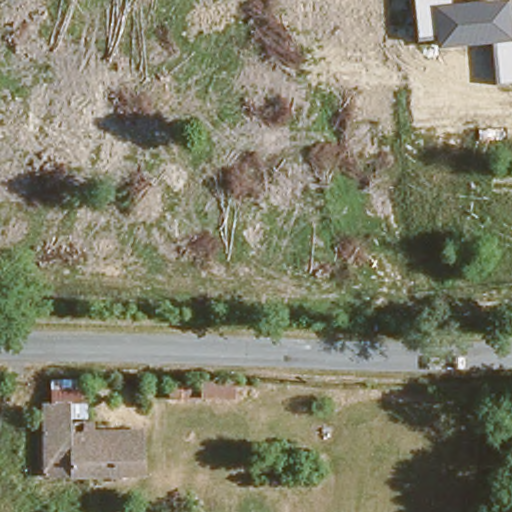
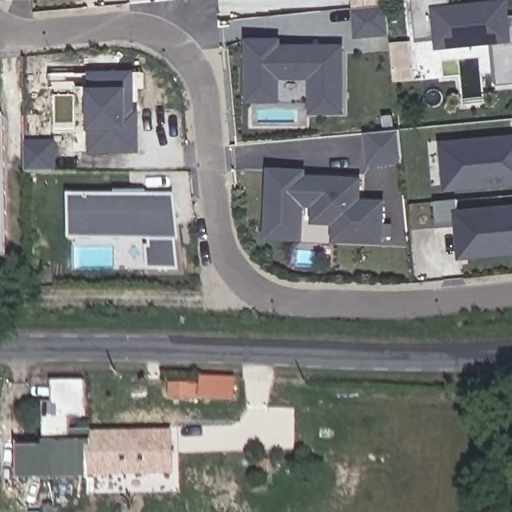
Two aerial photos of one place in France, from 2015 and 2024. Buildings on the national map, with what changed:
new [(385,2),(352,7),(352,0),(384,0),(385,2)]
unchanged [(511,17),(512,16),(512,83),(498,84),(494,44),(438,49),(437,40),(418,41),(413,0),(451,0),(452,6),(510,0),(511,17)]
new [(253,97),(253,87),(252,67),(252,55),(252,40),(282,39),(282,47),(337,46),(338,104),(308,104),(307,74),(282,75),(282,87),(282,97),(253,97)]
new [(89,72),(131,72),(130,110),(124,110),(124,125),(135,124),(136,148),(90,149),(89,72)]
new [(4,115),(6,260),(0,260),(0,115),(4,115)]
new [(396,132),(400,161),(367,162),(364,134),(396,132)]
new [(512,251),(459,257),(455,224),(433,227),(431,199),(446,197),(440,142),(512,135),(512,251)]
new [(55,144),(57,169),(27,168),(25,142),(55,144)]
new [(268,169),(305,170),(304,176),(362,177),(361,199),(382,199),(382,244),(333,242),(332,223),(312,223),(309,204),(303,204),(301,237),(263,237),(268,169)]
new [(174,197),(179,242),(174,242),(177,271),(148,271),(145,248),(152,247),(152,241),(71,241),(69,197),(174,197)]
unchanged [(161,395),(161,370),(237,368),(237,393),(161,395)]
unchanged [(89,421),(89,472),(40,472),(40,437),(40,401),(61,401),(61,378),(90,378),(89,421)]
unchanged [(89,421),(116,421),(116,433),(140,433),(140,472),(89,472),(89,421)]
new [(174,431),(175,476),(140,477),(140,472),(140,433),(174,431)]

